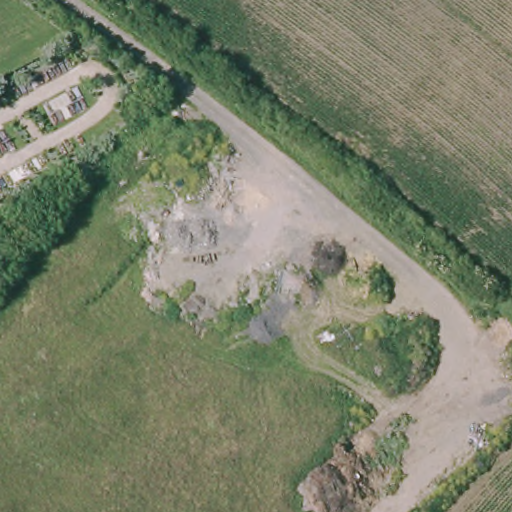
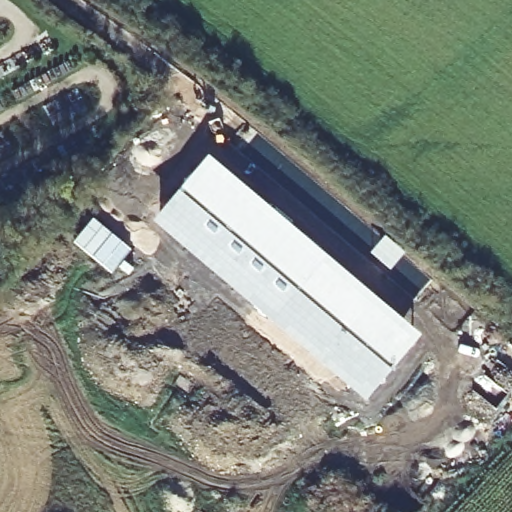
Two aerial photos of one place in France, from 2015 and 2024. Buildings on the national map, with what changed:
new [(207,156),(420,336),(365,403),(151,224),(207,156)]

